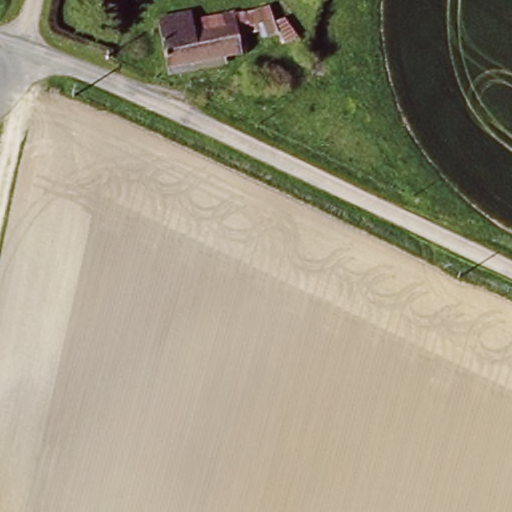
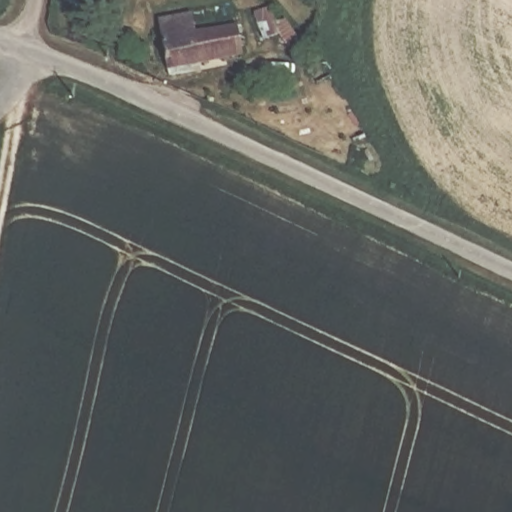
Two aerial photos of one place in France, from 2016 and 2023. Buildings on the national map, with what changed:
unchanged [(273,1),(280,30),(262,32),(257,3),(273,1)]
unchanged [(175,76),(172,67),(161,19),(194,11),(197,24),(209,21),(207,12),(243,4),(252,46),(201,59),(203,68),(175,76)]

